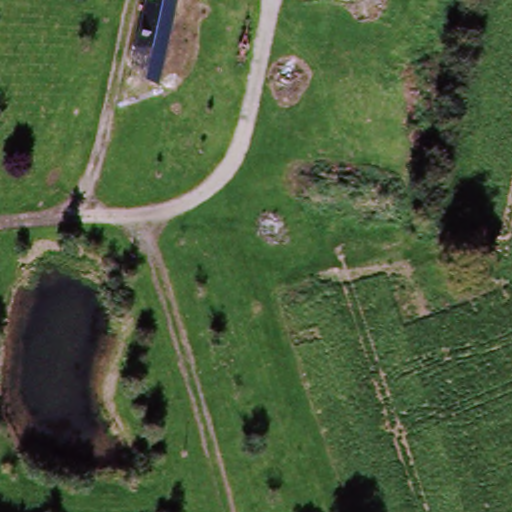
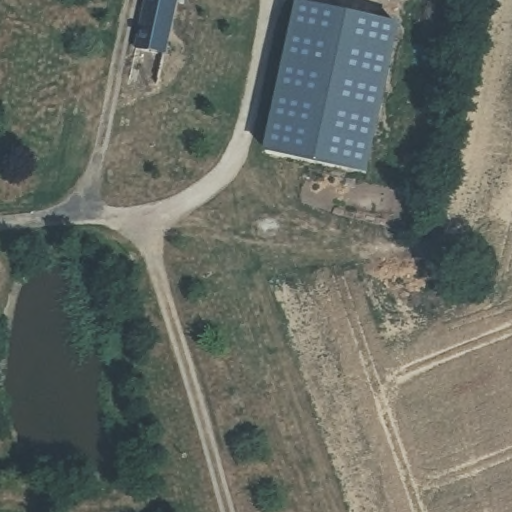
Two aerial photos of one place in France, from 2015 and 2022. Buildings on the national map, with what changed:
unchanged [(150,0),(180,0),(160,88),(131,81),(150,0)]
new [(299,5),(397,26),(365,174),(267,152),(299,5)]

